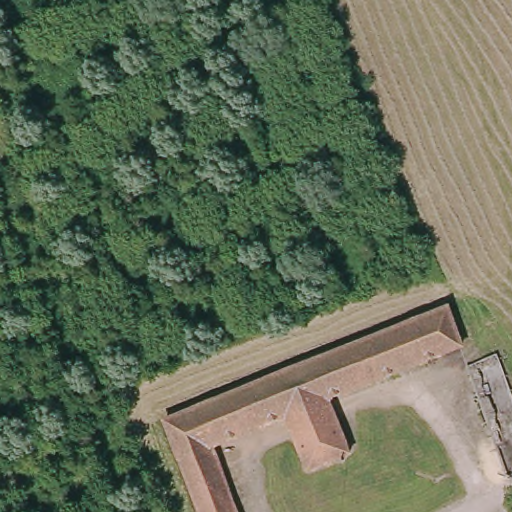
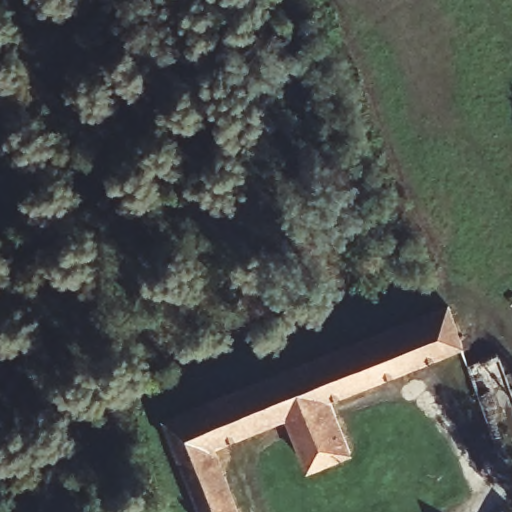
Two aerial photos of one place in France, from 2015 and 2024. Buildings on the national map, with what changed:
unchanged [(346,451),(305,467),(283,412),(206,441),(232,512),(196,512),(184,482),(159,416),(354,340),(443,305),(461,345),(324,396),(346,451)]

